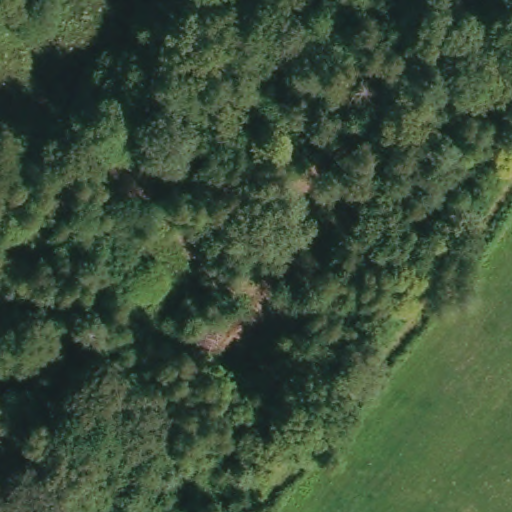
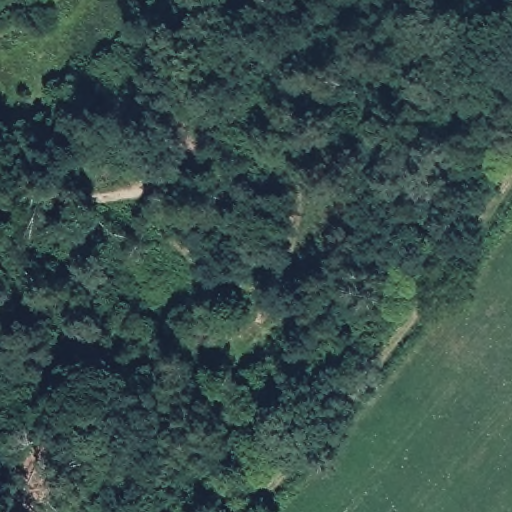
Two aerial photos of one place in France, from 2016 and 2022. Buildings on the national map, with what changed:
[]

